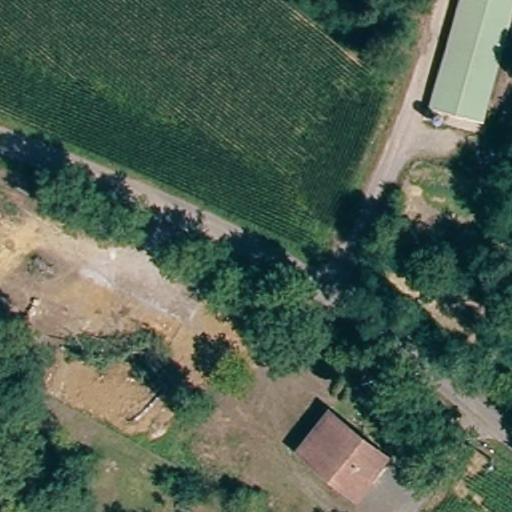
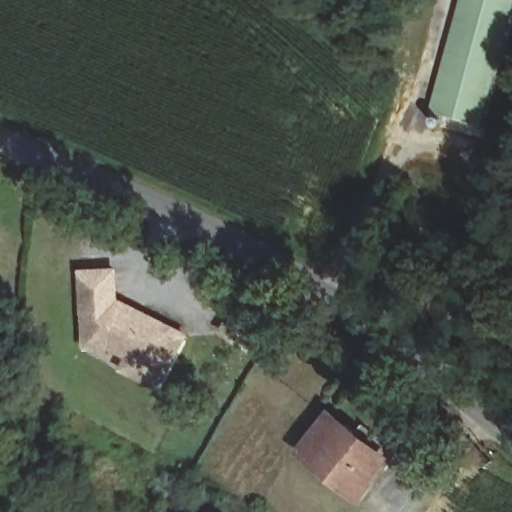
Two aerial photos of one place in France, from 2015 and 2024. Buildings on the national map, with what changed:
unchanged [(437,110),(467,0),(512,0),(512,17),(483,123),(437,110)]
new [(119,268),(121,297),(191,333),(161,392),(119,370),(127,359),(111,350),(85,352),(79,269),(119,268)]
unchanged [(300,448),(332,410),(358,433),(354,438),(376,459),(361,476),(370,484),(358,499),(300,448)]

